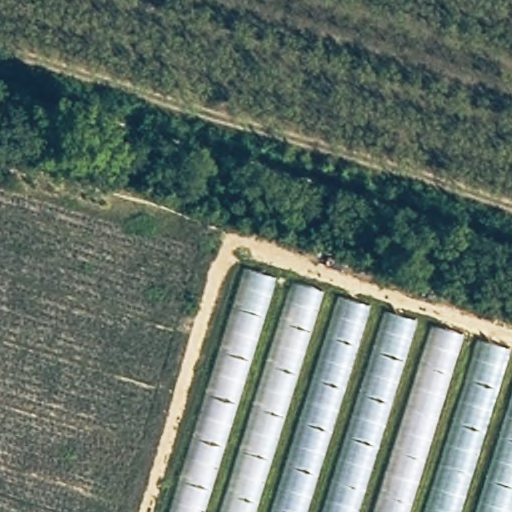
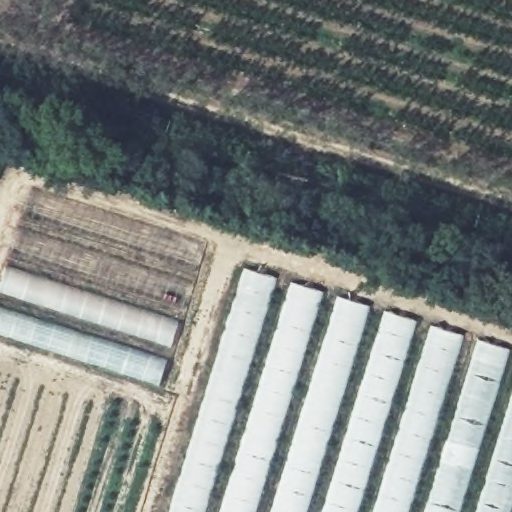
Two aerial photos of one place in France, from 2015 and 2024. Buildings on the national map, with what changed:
unchanged [(512,350),(512,512),(166,512),(244,263),(512,350)]
new [(158,386),(0,335),(0,284),(5,266),(179,321),(158,386)]

